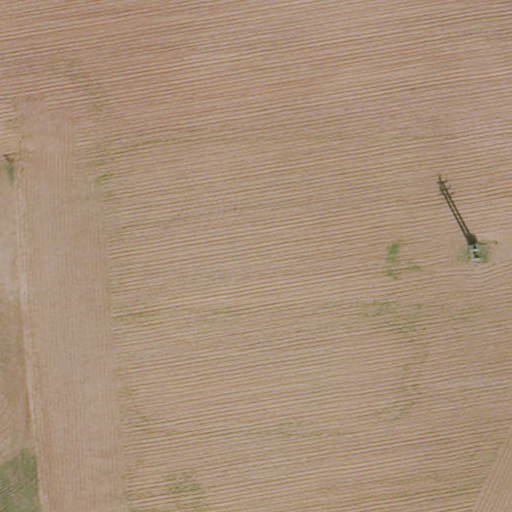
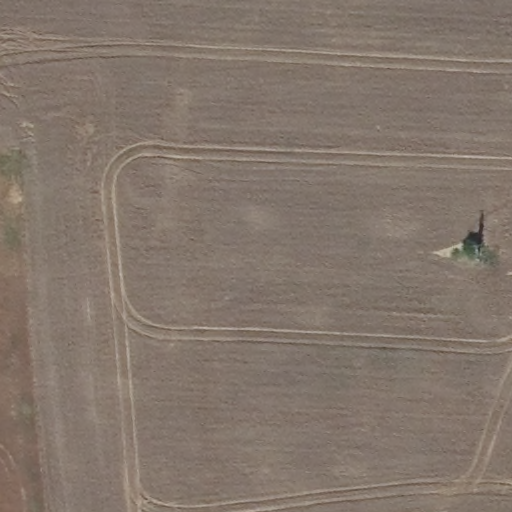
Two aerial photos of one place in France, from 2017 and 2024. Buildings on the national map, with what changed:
[]

